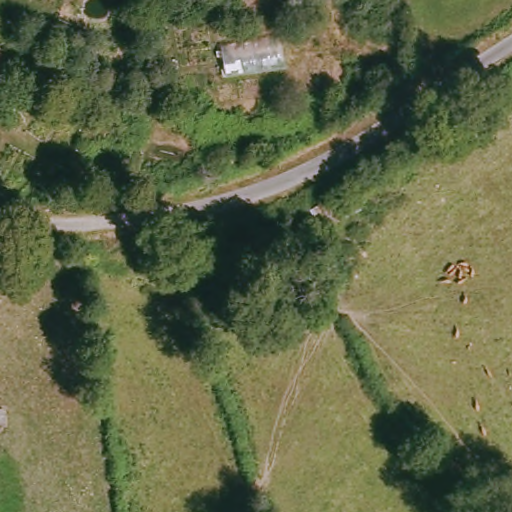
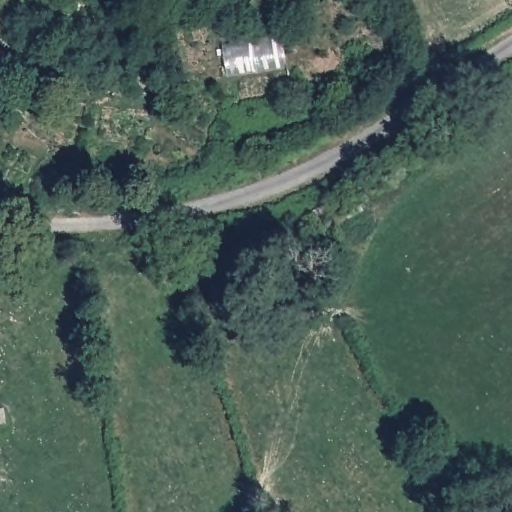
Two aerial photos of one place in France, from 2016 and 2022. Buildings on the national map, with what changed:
unchanged [(313,211),(358,189),(368,212),(324,232),(313,211)]

